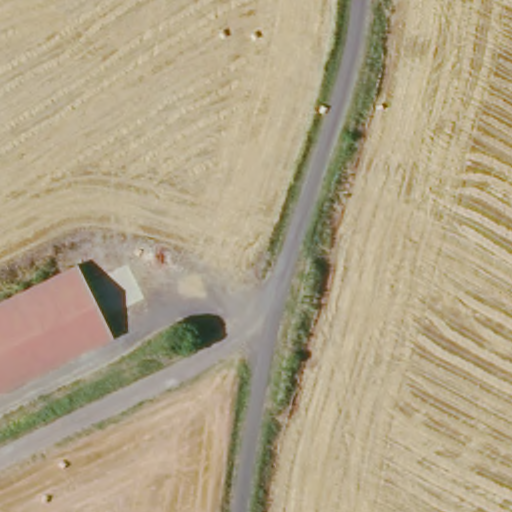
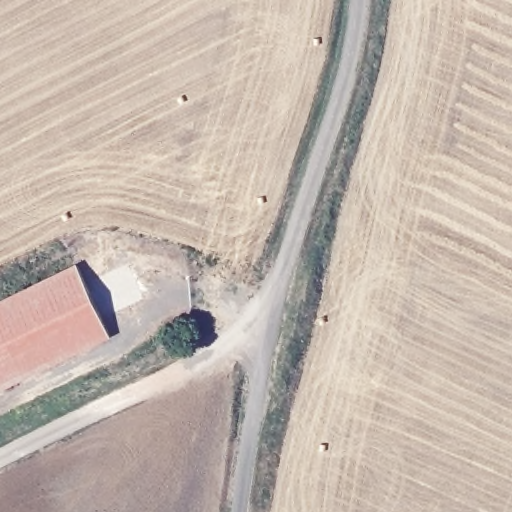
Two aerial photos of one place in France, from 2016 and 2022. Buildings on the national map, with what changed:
unchanged [(116,337),(0,393),(0,310),(85,270),(116,337)]

